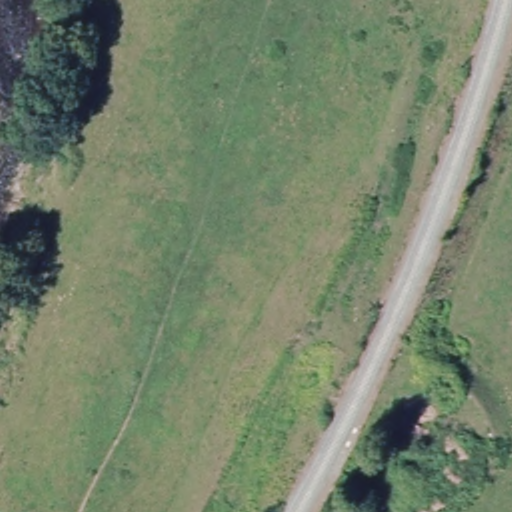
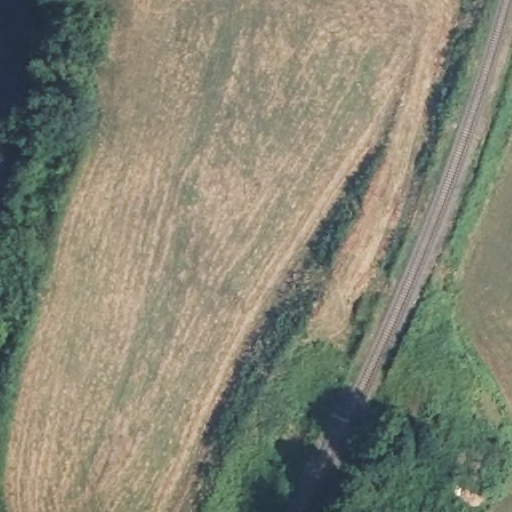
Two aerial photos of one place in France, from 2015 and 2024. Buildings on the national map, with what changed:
[]

